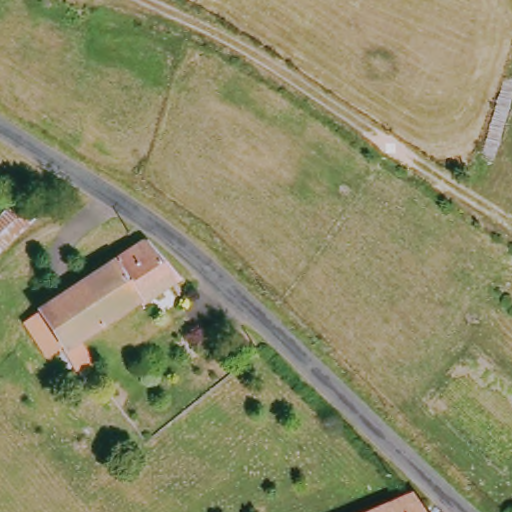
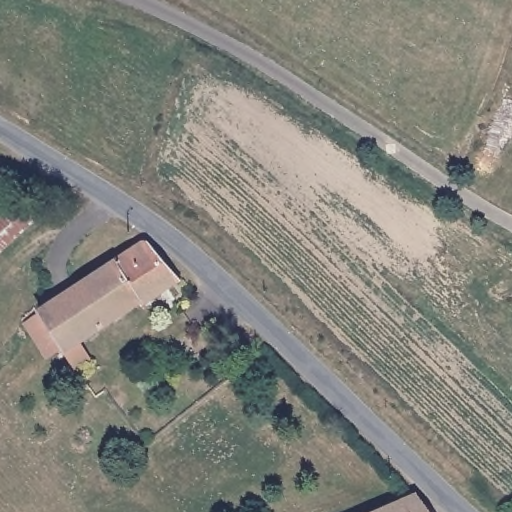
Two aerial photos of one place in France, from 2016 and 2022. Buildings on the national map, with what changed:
unchanged [(0,213),(14,200),(30,215),(0,244),(0,213)]
unchanged [(166,275),(75,341),(87,358),(73,366),(33,308),(141,235),(166,275)]
unchanged [(426,512),(372,512),(412,494),(426,512)]

